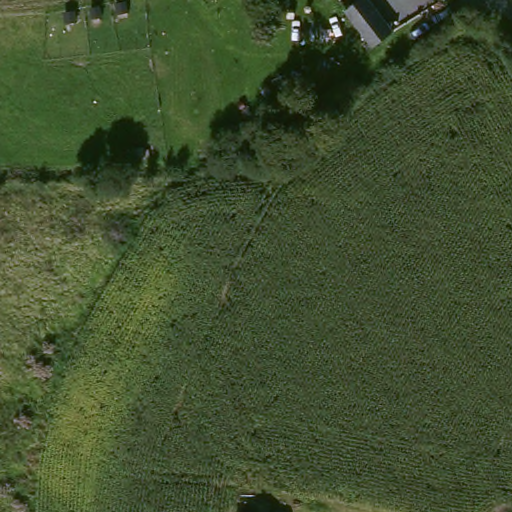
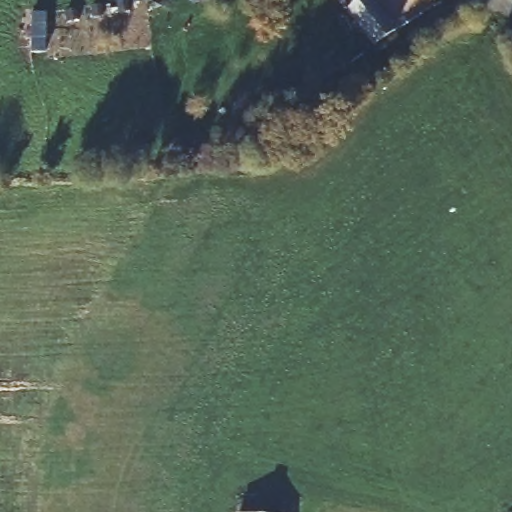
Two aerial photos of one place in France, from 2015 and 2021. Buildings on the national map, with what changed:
unchanged [(353,18),(347,10),(355,2),(357,0),(372,0),(395,26),(370,44),(353,18)]

